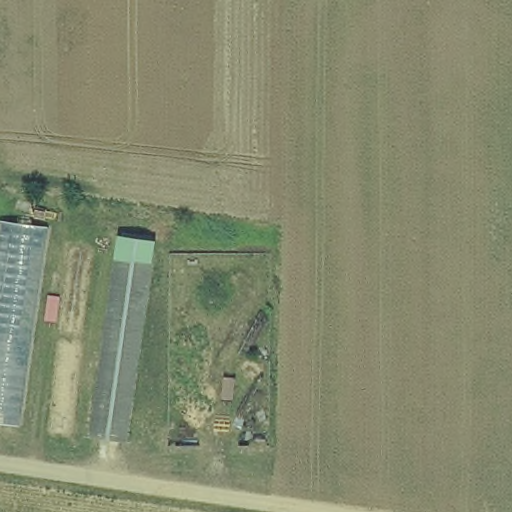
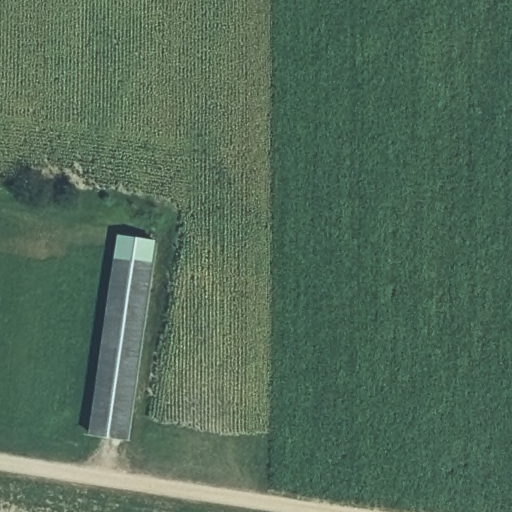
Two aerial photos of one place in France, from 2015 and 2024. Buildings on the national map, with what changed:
demolished [(7,221),(56,226),(27,428),(0,424),(0,269),(7,221)]
unchanged [(125,238),(157,244),(132,443),(99,437),(125,238)]

